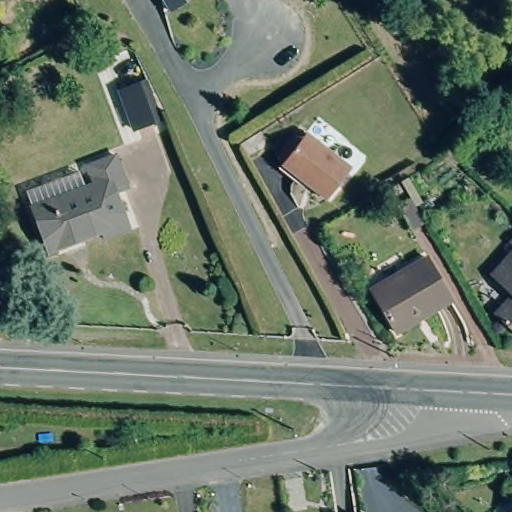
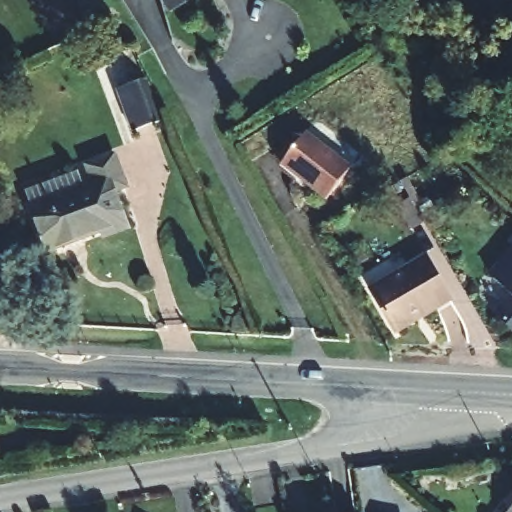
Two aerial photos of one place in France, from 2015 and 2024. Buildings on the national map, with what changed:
unchanged [(130,130),(116,90),(142,80),(156,123),(130,130)]
unchanged [(327,199),(283,165),(306,136),(350,170),(327,199)]
unchanged [(97,186),(86,162),(113,149),(128,181),(115,187),(131,224),(108,235),(105,227),(53,251),(35,210),(28,195),(80,172),(85,186),(87,191),(97,186)]
unchanged [(395,206),(407,199),(423,224),(409,230),(395,206)]
unchanged [(512,244),(512,251),(508,248),(512,244)]
unchanged [(417,316),(414,312),(390,327),(367,289),(423,255),(448,298),(417,316)]
unchanged [(509,300),(489,277),(512,257),(512,335),(494,316),(509,300)]
unchanged [(512,506),(512,512),(507,512),(507,511),(512,506)]

